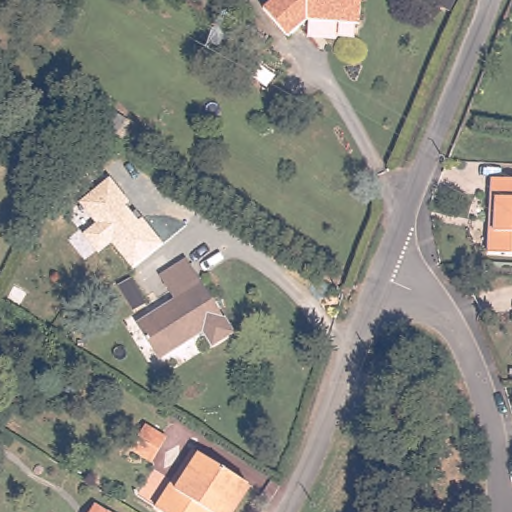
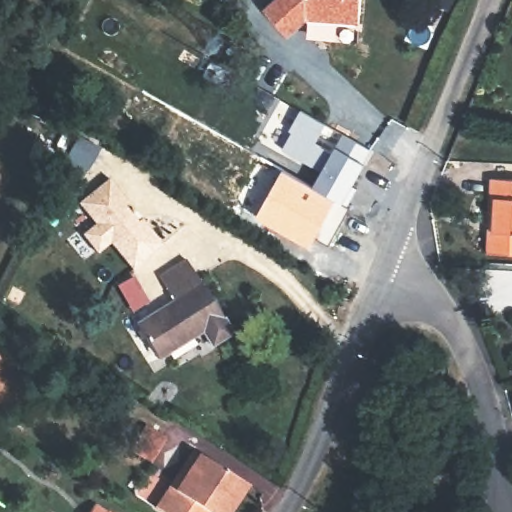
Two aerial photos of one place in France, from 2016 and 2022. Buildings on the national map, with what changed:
unchanged [(360,21),(309,17),(290,34),(264,7),(273,0),(362,0),(360,21)]
new [(290,132),(289,131),(299,111),(371,149),(363,164),(365,165),(344,204),(311,187),(320,170),(281,150),(290,132)]
new [(311,187),(344,204),(349,207),(330,246),(313,238),(308,246),(255,217),(282,169),(311,187)]
unchanged [(132,270),(110,244),(97,254),(81,234),(94,223),(77,203),(110,176),(163,245),(132,270)]
unchanged [(493,230),(499,230),(500,199),(494,198),(494,179),(512,180),(512,253),(493,252),(493,230)]
unchanged [(178,299),(163,274),(191,257),(236,333),(214,346),(205,330),(160,355),(139,321),(178,299)]
unchanged [(170,435),(155,459),(135,447),(149,422),(170,435)]
unchanged [(173,486),(194,450),(200,453),(248,480),(230,512),(166,512),(161,509),(173,486)]
unchanged [(113,512),(109,512),(110,510),(113,512)]

